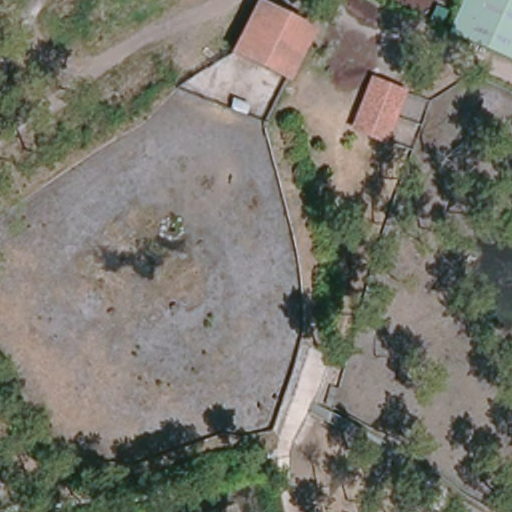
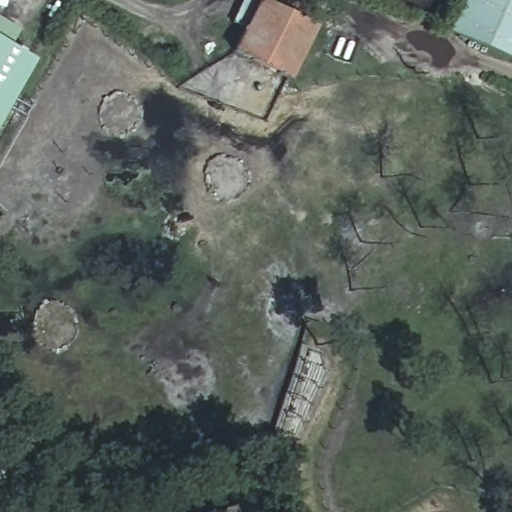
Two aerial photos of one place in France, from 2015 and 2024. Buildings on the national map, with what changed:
unchanged [(462,0),(512,0),(512,59),(448,32),(462,0)]
unchanged [(290,79),(233,50),(258,2),(314,30),(290,79)]
new [(17,27),(9,47),(31,61),(0,116),(0,18),(17,27)]
demolished [(388,144),(352,130),(373,77),(408,91),(388,144)]

